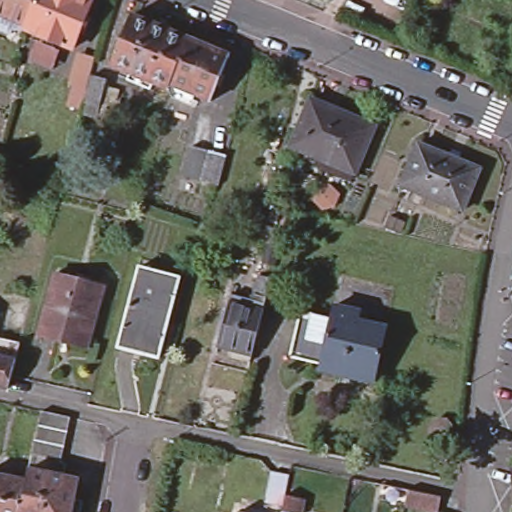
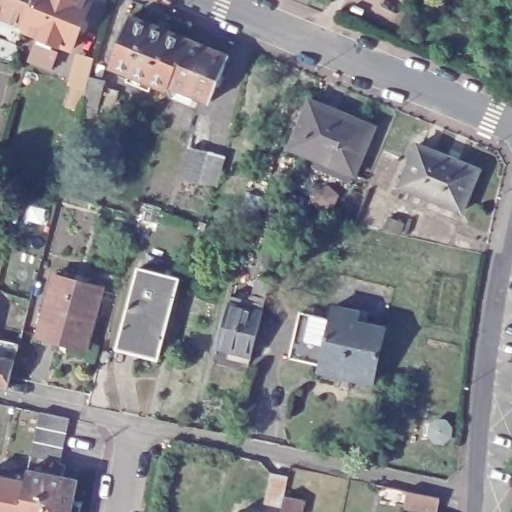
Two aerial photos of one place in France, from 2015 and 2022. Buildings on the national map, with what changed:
unchanged [(35,0),(25,23),(0,12),(0,0),(35,0)]
unchanged [(23,26),(25,23),(35,0),(91,0),(71,46),(23,26)]
unchanged [(170,99),(166,92),(153,86),(151,91),(127,81),(130,76),(110,69),(131,18),(187,41),(230,59),(210,104),(195,98),(192,106),(170,99)]
unchanged [(80,118),(83,105),(91,77),(108,81),(106,89),(121,93),(117,108),(114,121),(99,116),(97,123),(80,118)]
unchanged [(375,129),(354,177),(303,155),(290,149),(311,101),(316,103),(375,129)]
unchanged [(480,171),(461,214),(400,188),(417,145),(480,171)]
unchanged [(217,185),(201,180),(204,166),(200,166),(197,178),(182,174),(190,146),(208,150),(225,154),(217,185)]
unchanged [(175,275),(154,355),(115,345),(136,265),(175,275)]
unchanged [(102,287),(87,351),(38,339),(55,275),(102,287)]
unchanged [(267,278),(262,300),(250,297),(255,275),(267,278)]
unchanged [(222,359),(225,349),(212,346),(225,296),(261,304),(248,355),(246,365),(222,359)]
unchanged [(357,307),(358,305),(370,307),(366,319),(385,323),(373,377),(320,365),(320,361),(290,353),(293,338),(296,323),(300,308),(331,315),(334,302),(357,307)]
unchanged [(15,343),(12,357),(8,374),(6,385),(0,383),(0,339),(15,343)]
unchanged [(72,419),(62,463),(33,456),(43,412),(72,419)]
unchanged [(437,418),(447,419),(453,428),(451,438),(444,444),(435,442),(428,434),(430,423),(437,418)]
unchanged [(268,464),(265,478),(246,473),(250,460),(268,464)]
unchanged [(25,465),(72,475),(68,496),(77,498),(74,512),(14,512),(21,479),(25,465)]
unchanged [(21,479),(14,512),(0,512),(0,474),(21,479)]
unchanged [(271,506),(263,504),(270,475),(288,479),(284,497),(301,501),(299,512),(270,512),(271,506)]
unchanged [(438,512),(431,512),(405,507),(405,508),(375,503),(379,486),(407,492),(440,498),(438,512)]

